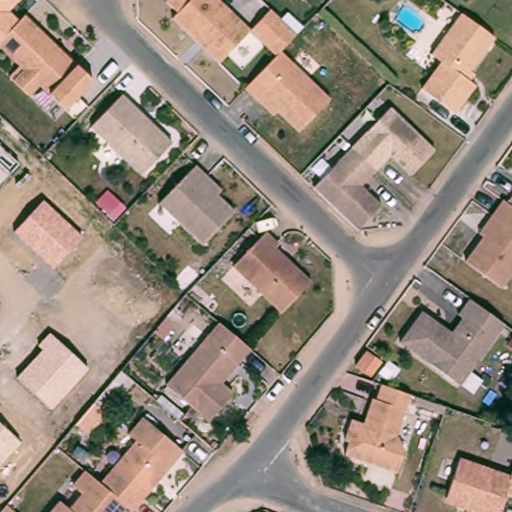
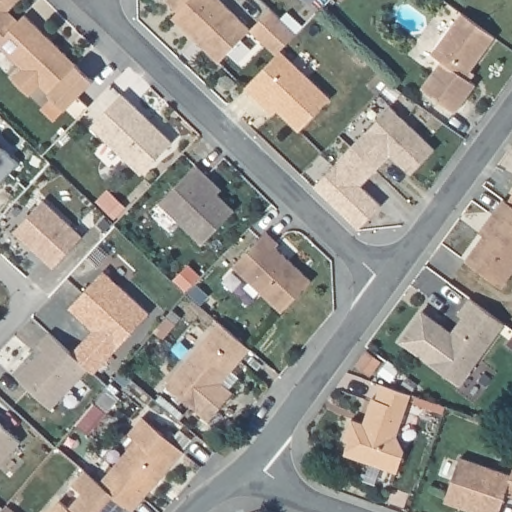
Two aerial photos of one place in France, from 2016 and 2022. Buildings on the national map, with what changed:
unchanged [(8,10),(20,21),(16,25),(5,37),(0,42),(0,0),(18,0),(8,10)]
unchanged [(226,60),(179,15),(184,9),(175,0),(230,0),(257,27),(226,60)]
unchanged [(278,5),(304,31),(288,49),(284,52),(284,53),(257,27),(278,5)]
unchanged [(500,35),(470,75),(480,82),(459,110),(425,85),(446,58),(436,51),(466,10),(500,35)]
unchanged [(96,80),(68,109),(42,85),(32,96),(15,80),(26,69),(0,44),(0,42),(5,37),(16,25),(20,21),(26,14),(96,80)]
unchanged [(267,99),(252,86),(267,70),(284,53),(284,52),(288,49),(338,96),(307,129),(285,108),(281,112),(267,99)]
unchanged [(175,140),(144,172),(93,123),(124,91),(175,140)]
unchanged [(438,145),(415,169),(393,150),(379,165),(364,181),(385,201),(362,225),(316,183),(354,143),(392,102),(438,145)]
unchanged [(10,174),(0,166),(0,148),(18,164),(10,174)]
unchanged [(224,188),(220,193),(237,210),(204,243),(161,201),(198,163),(210,175),(224,188)]
unchanged [(504,287),(468,261),(486,236),(482,233),(495,215),(507,199),(512,203),(512,277),(504,287)]
unchanged [(42,200),(81,237),(53,267),(13,232),(42,200)]
unchanged [(283,240),(280,244),(315,279),(285,309),(237,262),(271,228),(283,240)]
new [(69,309),(103,271),(149,313),(95,374),(89,369),(71,353),(92,331),(69,309)]
unchanged [(450,372),(403,338),(425,307),(446,322),(455,329),(466,314),(462,311),(473,295),(508,320),(474,367),(463,381),(450,372)]
unchanged [(255,343),(226,378),(237,387),(213,416),(170,380),(223,317),(255,343)]
unchanged [(41,351),(37,346),(50,333),(89,369),(52,410),(16,378),(41,351)]
unchanged [(366,352),(380,364),(368,378),(354,366),(366,352)]
unchanged [(352,453),(356,440),(351,438),(358,418),(374,423),(378,412),(374,411),(378,397),(382,398),(387,382),(417,392),(404,433),(412,448),(405,470),(352,453)]
unchanged [(188,452),(137,510),(131,506),(127,502),(105,482),(141,440),(134,434),(148,417),(188,452)]
unchanged [(0,464),(0,422),(21,442),(0,464)]
unchanged [(510,492),(504,512),(485,512),(469,507),(470,503),(451,497),(464,457),(512,473),(512,492),(510,492)]
unchanged [(126,512),(53,512),(64,500),(73,508),(87,493),(77,484),(90,470),(105,482),(127,502),(131,506),(126,512)]
unchanged [(24,512),(0,512),(9,500),(24,512)]

